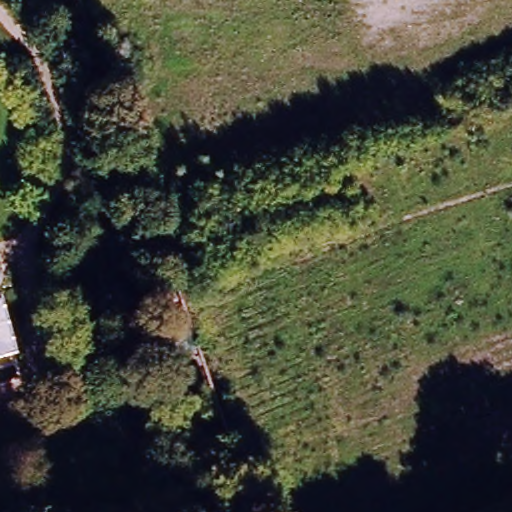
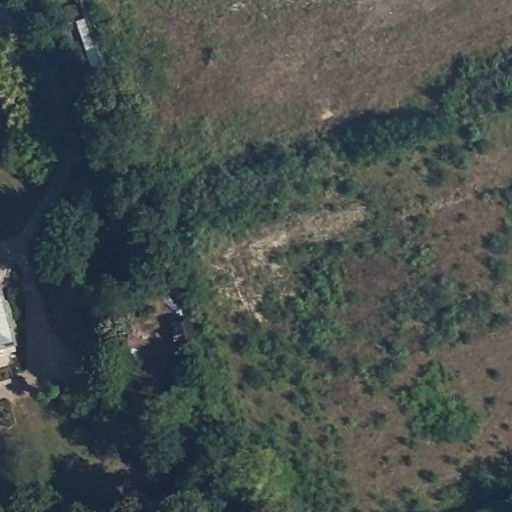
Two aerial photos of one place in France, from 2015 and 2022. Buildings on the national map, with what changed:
unchanged [(0,356),(0,309),(13,352),(0,356)]
unchanged [(197,351),(183,355),(180,345),(173,346),(171,337),(177,335),(174,325),(187,322),(197,351)]
unchanged [(132,363),(118,366),(110,342),(125,339),(132,363)]

